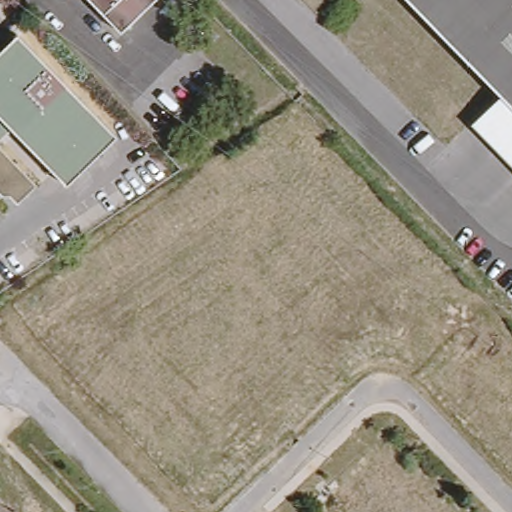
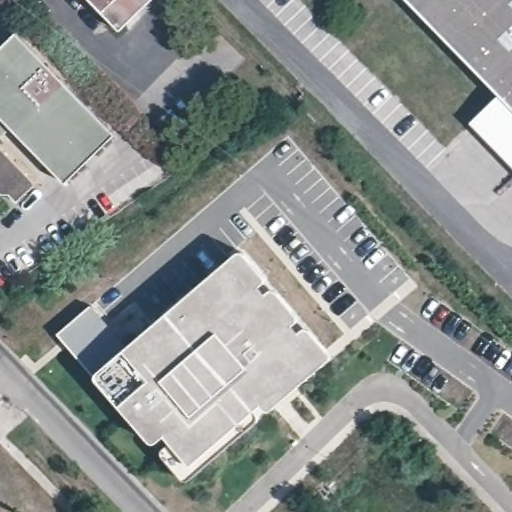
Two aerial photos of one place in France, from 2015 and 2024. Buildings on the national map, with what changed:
unchanged [(122,33),(91,0),(157,0),(122,33)]
unchanged [(482,72),(431,20),(411,0),(512,0),(512,104),(504,95),(482,72)]
unchanged [(0,120),(0,48),(14,34),(111,136),(61,184),(0,120)]
new [(512,159),(476,122),(504,95),(512,104),(512,159)]
unchanged [(15,203),(5,195),(0,200),(0,143),(37,185),(15,203)]
new [(90,306),(118,338),(166,298),(173,307),(239,251),(245,253),(263,276),(264,281),(231,310),(271,355),(285,342),(304,367),(254,409),(268,425),(195,488),(173,484),(157,464),(168,453),(57,333),(90,306)]
new [(254,409),(304,367),(285,342),(271,355),(231,310),(264,281),(266,283),(262,288),(266,294),(272,290),(279,293),(299,317),(299,320),(294,326),(299,333),(305,329),(309,330),(314,334),(330,354),(331,359),(324,366),(269,411),(264,407),(257,412),(254,409)]

